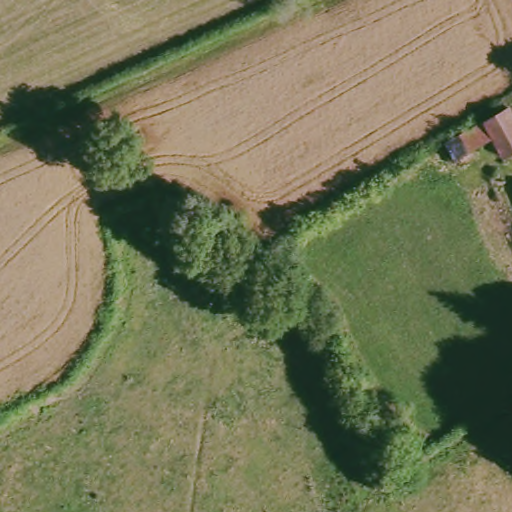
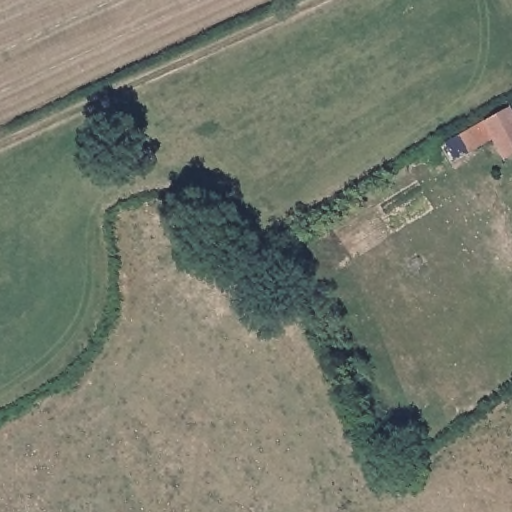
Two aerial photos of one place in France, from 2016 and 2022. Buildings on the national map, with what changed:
unchanged [(446,147),(512,112),(512,161),(499,144),(465,162),(457,166),(446,147)]

